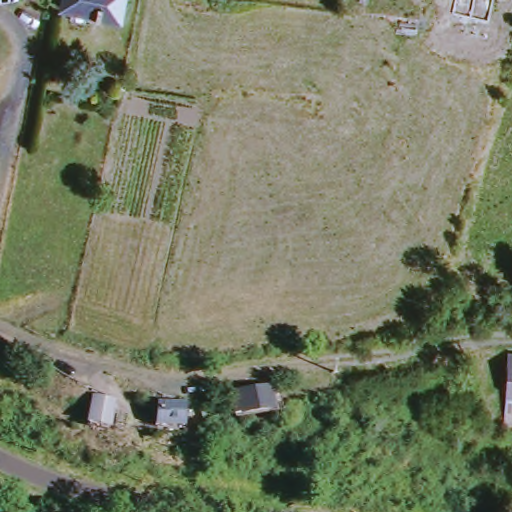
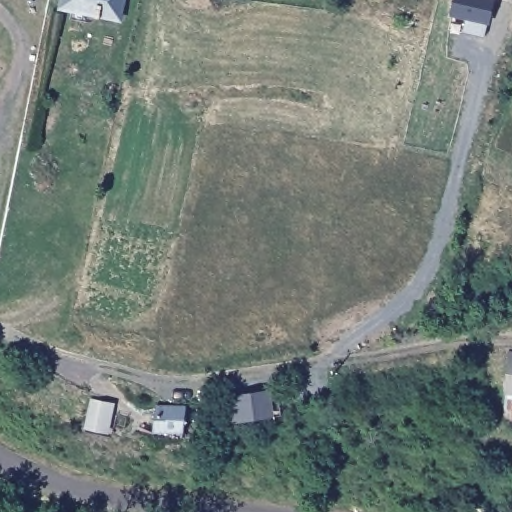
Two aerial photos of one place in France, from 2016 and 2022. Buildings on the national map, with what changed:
unchanged [(65,0),(121,0),(118,17),(63,10),(65,0)]
new [(495,0),(489,23),(488,23),(485,37),(465,32),(467,19),(450,15),(454,0),(495,0)]
unchanged [(512,351),(512,390),(501,388),(503,350),(512,351)]
unchanged [(277,412),(228,417),(227,399),(275,393),(277,412)]
unchanged [(92,423),(102,400),(118,406),(112,428),(92,423)]
unchanged [(158,425),(162,400),(192,405),(188,430),(158,425)]

